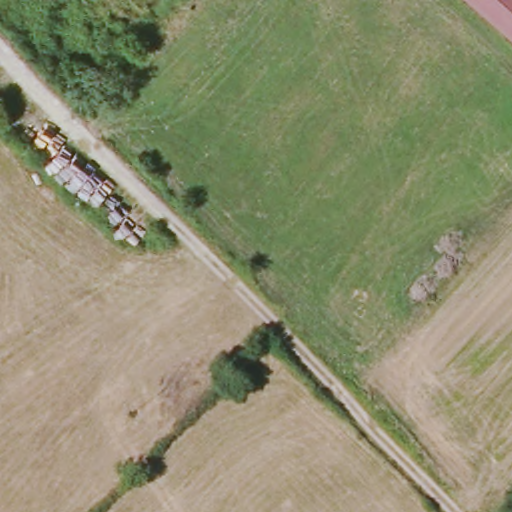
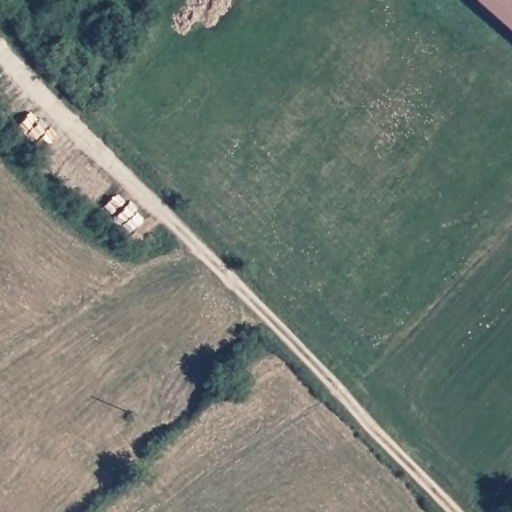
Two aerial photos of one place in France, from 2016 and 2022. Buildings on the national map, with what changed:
unchanged [(465,0),(512,0),(512,40),(465,0)]

